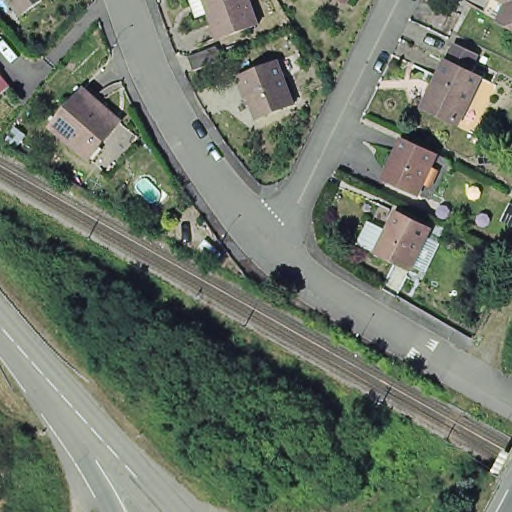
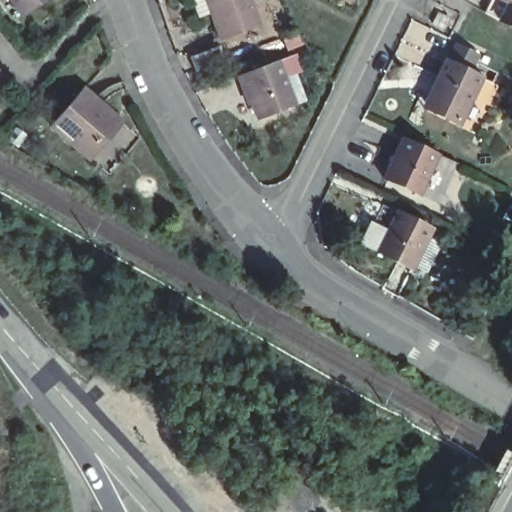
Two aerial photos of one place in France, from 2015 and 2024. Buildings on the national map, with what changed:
unchanged [(16,16),(5,0),(38,0),(16,16)]
unchanged [(259,24),(219,41),(209,18),(197,23),(188,0),(250,0),(259,24)]
unchanged [(349,3),(343,0),(351,0),(349,3)]
unchanged [(486,0),(512,0),(512,24),(499,17),(481,10),(486,0)]
unchanged [(437,13),(449,20),(443,31),(431,25),(437,13)]
unchanged [(418,101),(421,95),(443,51),(444,51),(451,36),(476,49),(469,64),(478,69),(477,71),(491,78),(471,120),(468,126),(418,101)]
unchanged [(281,55),(288,71),(281,75),(291,101),(254,116),(236,74),(281,55)]
unchanged [(0,83),(0,69),(7,77),(0,83)]
unchanged [(92,161),(87,156),(52,126),(83,89),(118,119),(124,124),(92,161)]
unchanged [(439,150),(419,194),(383,176),(403,133),(439,150)]
unchanged [(402,210),(437,226),(416,268),(381,250),(402,210)]

